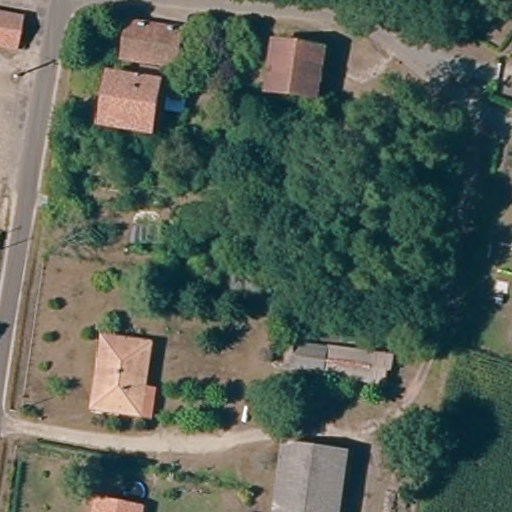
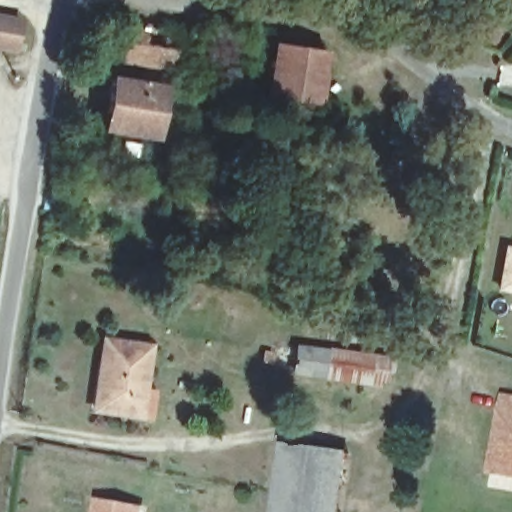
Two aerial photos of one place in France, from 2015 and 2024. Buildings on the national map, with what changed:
unchanged [(20,21),(16,47),(0,44),(0,18),(20,21)]
unchanged [(184,78),(114,67),(121,22),(192,33),(184,78)]
unchanged [(257,93),(263,46),(332,56),(326,102),(257,93)]
unchanged [(97,132),(106,77),(160,85),(151,141),(97,132)]
new [(512,289),(498,286),(506,244),(512,246),(512,289)]
unchanged [(387,385),(292,369),(297,341),(392,357),(387,385)]
unchanged [(137,409),(127,408),(97,404),(105,343),(135,347),(131,382),(141,383),(137,409)]
new [(512,478),(487,474),(501,393),(512,395),(512,478)]
unchanged [(352,462),(343,512),(272,512),(282,451),(352,462)]
unchanged [(132,512),(102,512),(103,507),(132,512)]

